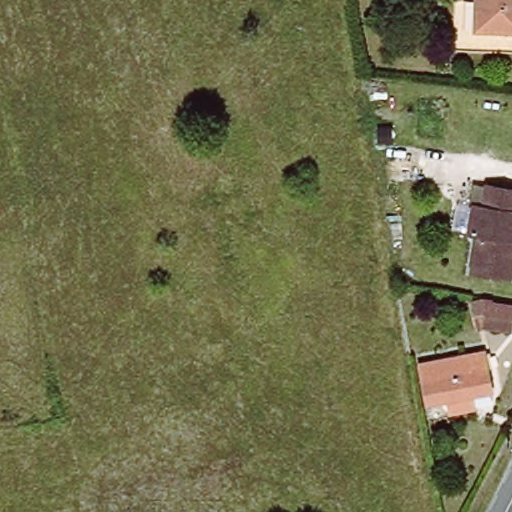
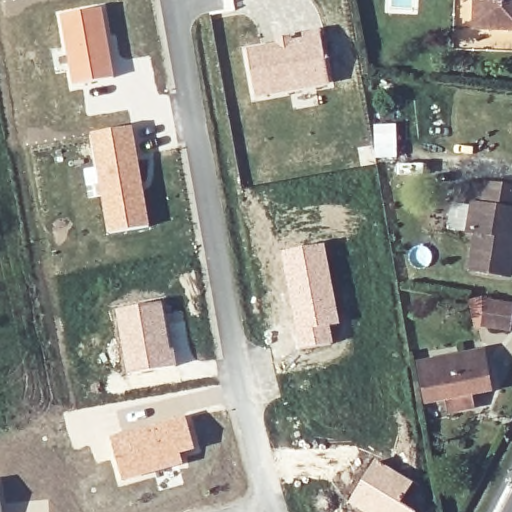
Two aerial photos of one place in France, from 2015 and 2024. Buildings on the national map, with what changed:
unchanged [(469,0),(512,0),(512,33),(467,30),(469,0)]
new [(103,6),(115,76),(72,85),(60,15),(103,6)]
new [(301,37),(300,32),(320,28),(331,84),(255,98),(246,48),(301,37)]
new [(94,166),(89,133),(132,125),(150,227),(106,235),(95,189),(88,190),(82,168),(94,166)]
unchanged [(506,240),(512,241),(512,274),(511,282),(470,276),(477,238),(468,236),(472,208),(483,210),(485,189),(512,192),(512,216),(510,216),(506,240)]
new [(325,244),(340,325),(331,327),(334,344),(298,351),(281,252),(325,244)]
unchanged [(512,299),(512,331),(479,325),(482,295),(512,299)]
new [(162,301),(177,366),(127,376),(115,310),(162,301)]
unchanged [(454,410),(451,399),(431,403),(425,363),(490,354),(495,390),(479,393),(480,405),(454,410)]
new [(186,416),(196,451),(181,455),(184,464),(122,482),(110,437),(186,416)]
new [(374,460),(415,483),(402,505),(415,512),(359,512),(346,505),(374,460)]
new [(2,512),(0,512),(0,498),(2,512)]

